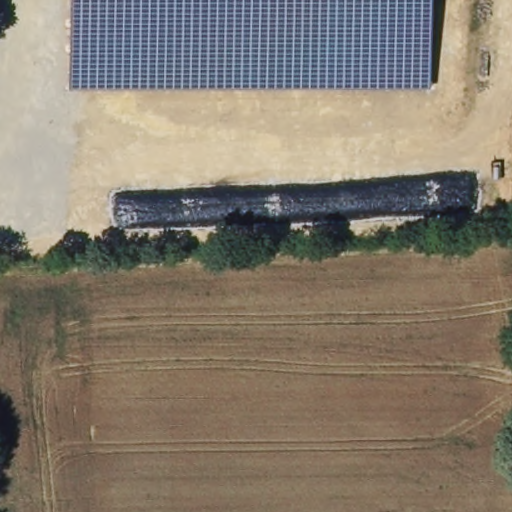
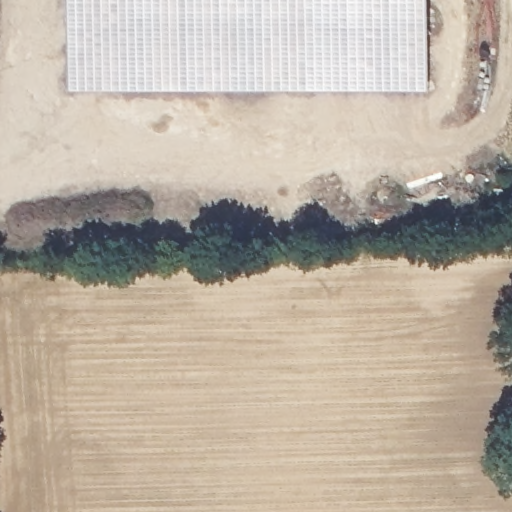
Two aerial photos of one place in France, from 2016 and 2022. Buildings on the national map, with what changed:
unchanged [(428,0),(428,90),(68,91),(69,0),(428,0)]

